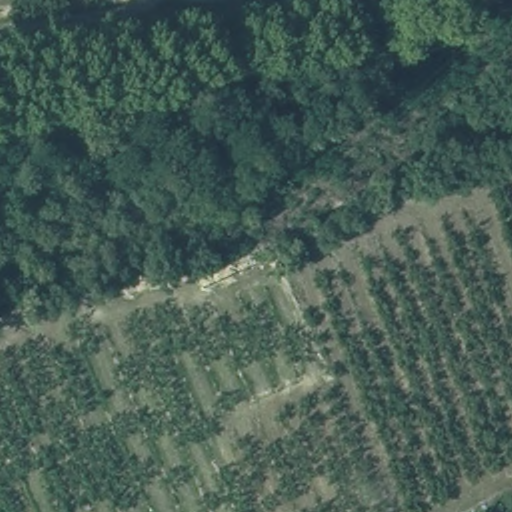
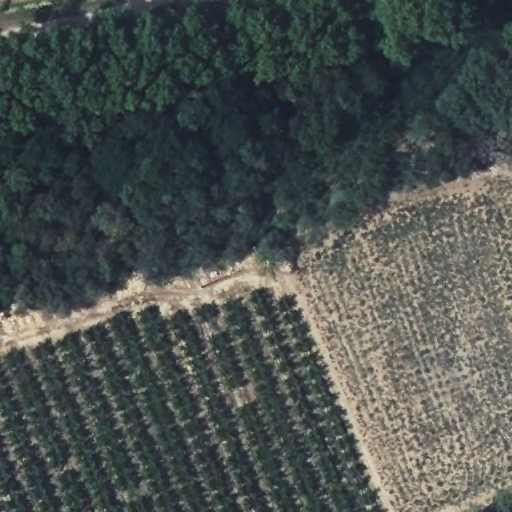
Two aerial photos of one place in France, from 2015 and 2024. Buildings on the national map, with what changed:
[]

